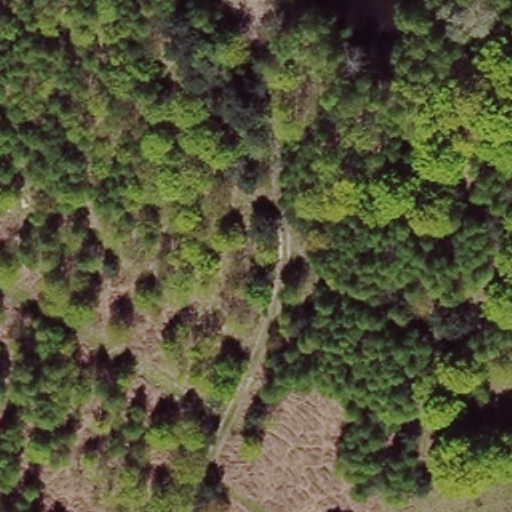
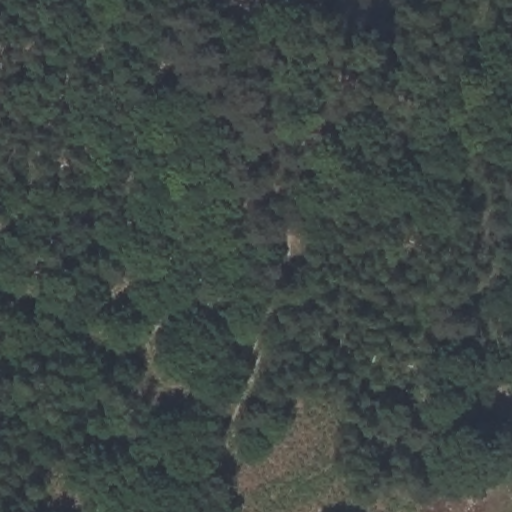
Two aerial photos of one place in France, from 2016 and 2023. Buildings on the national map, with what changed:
unchanged [(472,413),(454,426),(441,413),(458,396),(472,413)]

